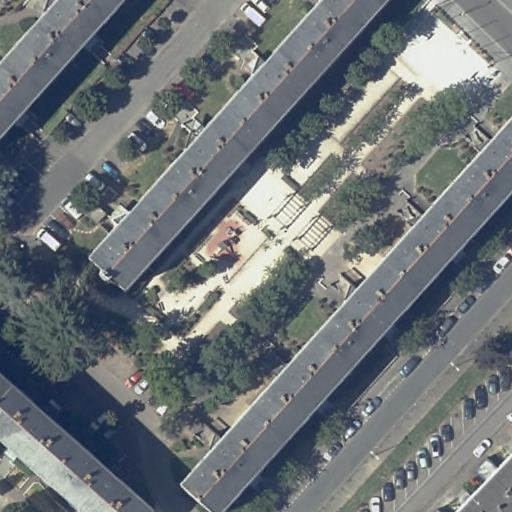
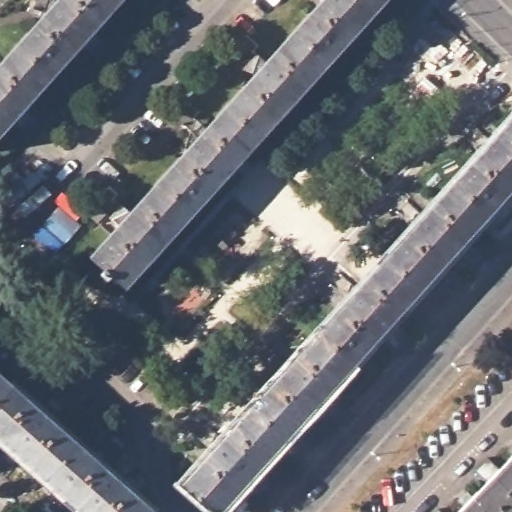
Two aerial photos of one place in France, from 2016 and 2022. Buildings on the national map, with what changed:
unchanged [(49,10),(52,0),(60,0),(61,2),(63,0),(126,0),(0,138),(0,70),(51,13),(49,10)]
unchanged [(112,279),(105,273),(109,268),(95,256),(126,223),(119,216),(135,205),(139,208),(192,150),(188,146),(198,125),(204,130),(207,127),(209,130),(260,74),(257,71),(264,53),(273,61),(328,0),(389,0),(129,286),(116,275),(112,279)]
unchanged [(246,38),(254,28),(268,41),(259,50),(246,38)]
unchanged [(184,106),(193,96),(206,108),(197,118),(184,106)]
unchanged [(185,484),(214,452),(210,448),(217,432),(225,439),(279,381),(274,377),(284,357),(293,366),(347,307),(343,303),(353,283),(362,291),(418,230),(414,226),(421,209),(429,217),(486,155),(483,152),(491,133),(499,140),(512,126),(512,193),(222,512),(216,512),(185,484)]
unchanged [(84,208),(94,197),(106,209),(97,220),(84,208)]
unchanged [(464,258),(473,248),(488,261),(479,270),(464,258)]
unchanged [(382,347),(391,336),(407,350),(397,360),(382,347)]
unchanged [(0,372),(40,407),(44,403),(61,410),(54,419),(110,470),(119,461),(126,479),(124,481),(156,510),(155,512),(88,512),(0,433),(0,372)]
unchanged [(329,405),(339,395),(354,409),(344,419),(329,405)]
unchanged [(1,468),(14,455),(24,465),(12,478),(1,468)]
unchanged [(512,460),(512,512),(461,512),(512,460)]
unchanged [(259,482),(269,471),(284,484),(274,495),(259,482)]
unchanged [(66,503),(75,512),(59,512),(66,503)]

